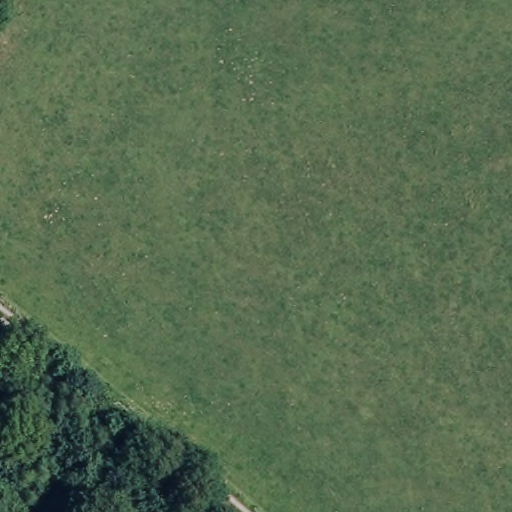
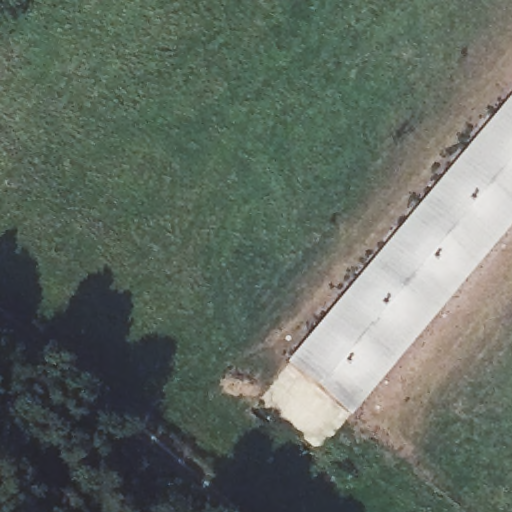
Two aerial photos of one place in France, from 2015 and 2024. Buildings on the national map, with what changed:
new [(512,104),(512,217),(347,412),(292,366),(512,104)]

